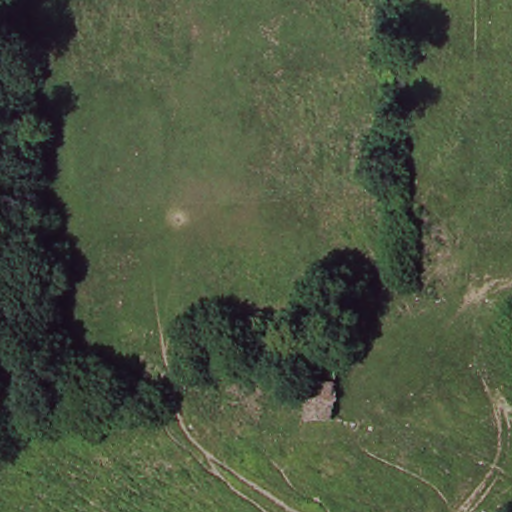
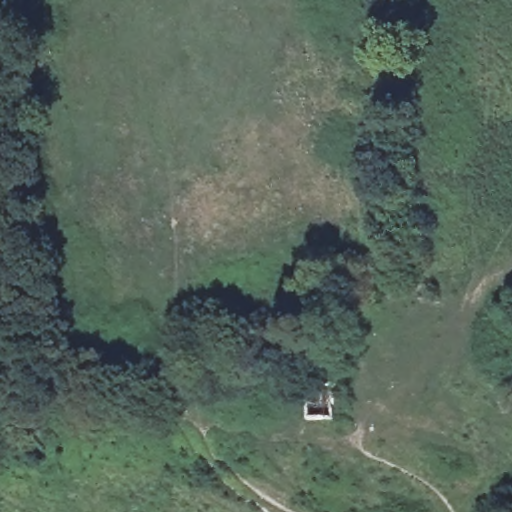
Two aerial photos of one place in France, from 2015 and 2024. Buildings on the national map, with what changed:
unchanged [(312,363),(341,366),(337,436),(308,436),(312,370),(312,363)]

